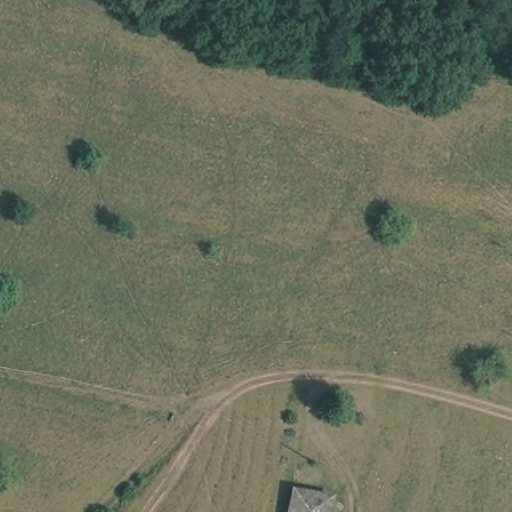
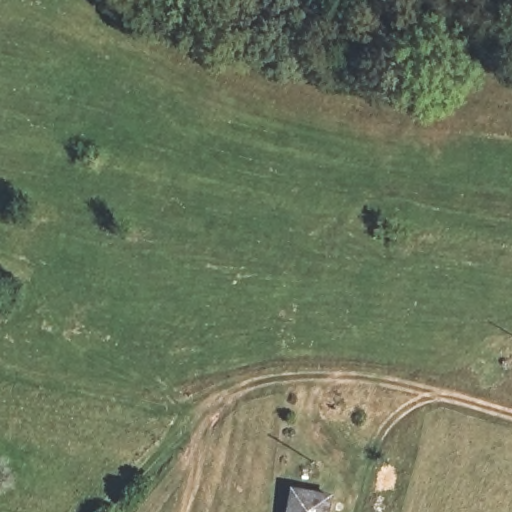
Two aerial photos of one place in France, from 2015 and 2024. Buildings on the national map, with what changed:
unchanged [(303,487),(341,494),(337,512),(298,512),(303,487)]

